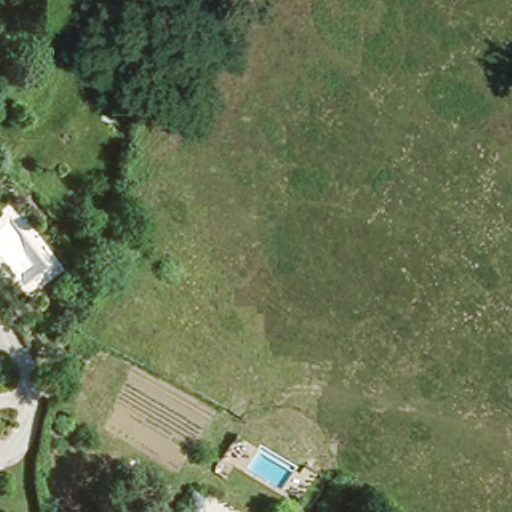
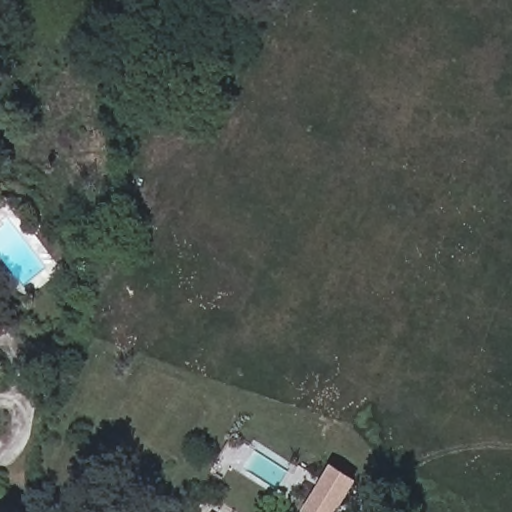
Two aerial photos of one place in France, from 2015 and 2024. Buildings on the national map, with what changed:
new [(359,483),(341,512),(303,512),(332,466),(359,483)]
unchanged [(220,512),(211,512),(214,508),(220,512)]

